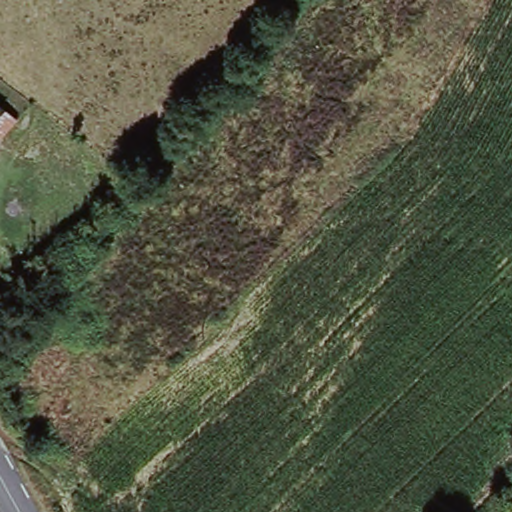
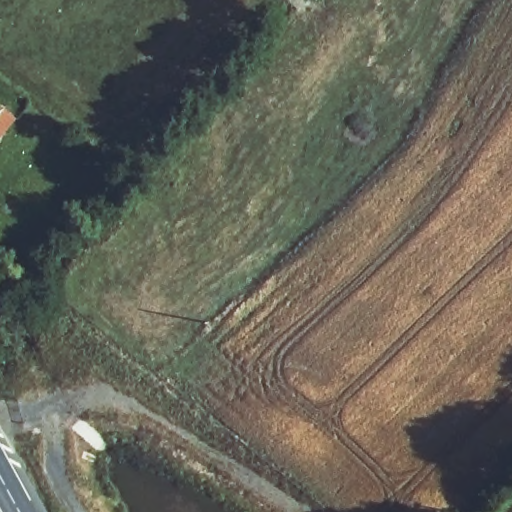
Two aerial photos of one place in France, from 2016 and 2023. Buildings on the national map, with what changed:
unchanged [(0,106),(20,121),(0,145),(0,106)]
unchanged [(0,306),(0,301),(2,304),(0,306)]

